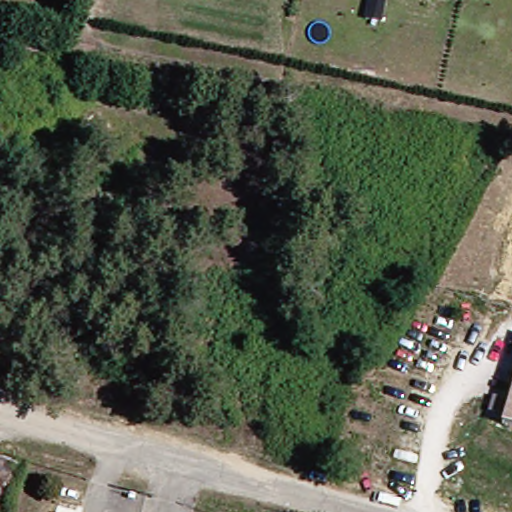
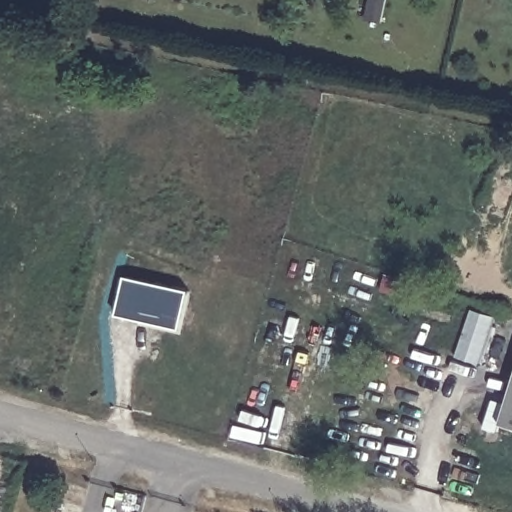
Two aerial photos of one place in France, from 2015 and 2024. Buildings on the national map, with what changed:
new [(187,292),(180,327),(120,314),(127,280),(187,292)]
new [(472,308),(495,316),(480,364),(456,356),(472,308)]
unchanged [(505,418),(512,396),(512,420),(505,418)]

